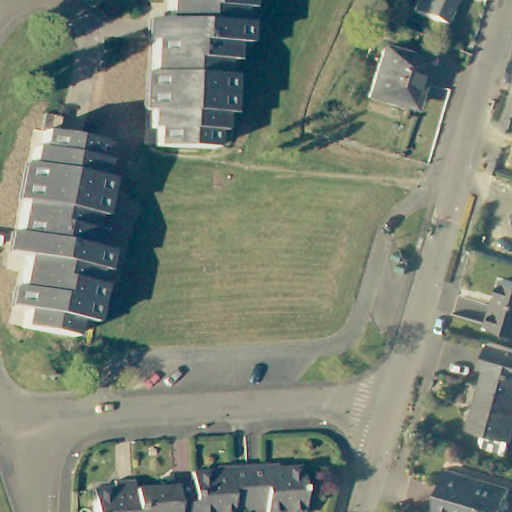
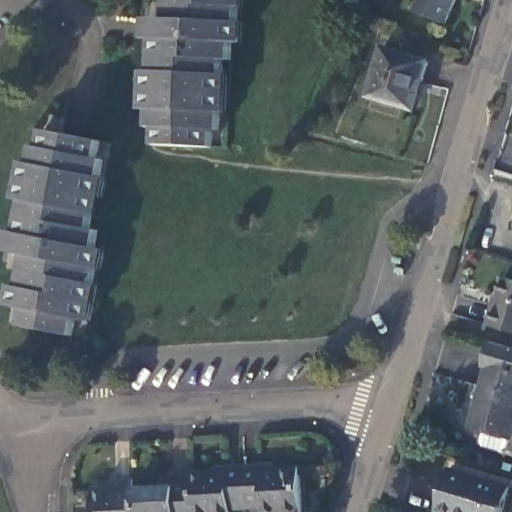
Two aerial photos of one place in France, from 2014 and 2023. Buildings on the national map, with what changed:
unchanged [(231,47),(230,65),(227,65),(221,64),(218,134),(209,134),(207,151),(154,149),(155,132),(148,131),(153,24),(166,25),(167,0),(237,0),(235,47),(231,47)]
unchanged [(413,12),(418,0),(456,0),(445,27),(413,12)]
unchanged [(432,62),(426,83),(420,82),(411,109),(371,96),(388,47),(432,62)]
unchanged [(98,252),(104,254),(89,325),(80,322),(76,340),(63,337),(27,330),(30,313),(21,312),(31,260),(17,256),(38,152),(45,153),(49,136),(45,135),(48,117),(66,121),(62,139),(64,139),(93,145),(103,147),(99,164),(107,165),(93,233),(98,235),(102,235),(98,252)]
unchanged [(512,332),(489,326),(494,307),(497,307),(505,280),(512,281),(512,332)]
unchanged [(482,444),(485,435),(471,431),(489,372),(484,370),(491,345),(512,351),(512,441),(511,443),(507,457),(485,450),(482,444)]
unchanged [(504,512),(438,512),(451,468),(511,487),(504,512)]
unchanged [(262,470),(262,475),(299,473),(302,512),(246,512),(244,471),(262,470)]
unchanged [(246,512),(192,512),(190,483),(190,479),(227,476),(227,472),(244,471),(246,512)]
unchanged [(91,495),(112,493),(112,484),(132,482),(132,492),(133,512),(92,512),(91,495)]
unchanged [(192,512),(133,512),(132,492),(172,490),(172,485),(190,483),(192,512)]

